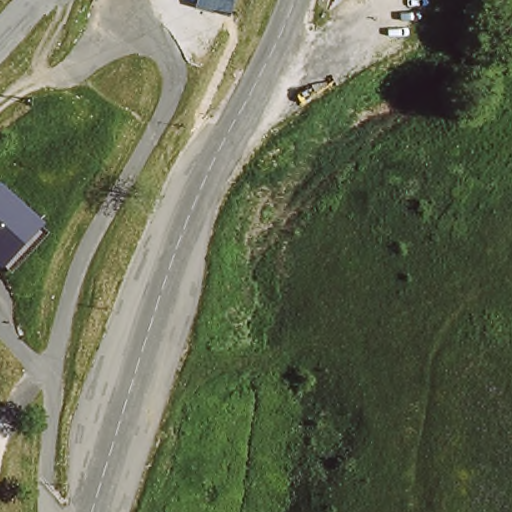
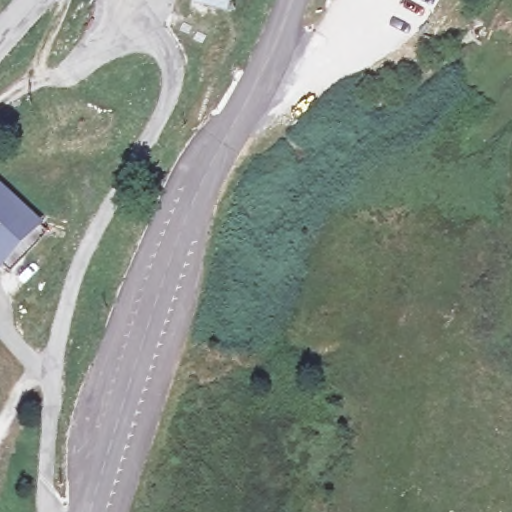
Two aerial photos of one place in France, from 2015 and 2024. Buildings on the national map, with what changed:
unchanged [(196,0),(227,0),(225,8),(196,0)]
unchanged [(57,254),(19,293),(0,274),(0,199),(6,193),(57,254)]

